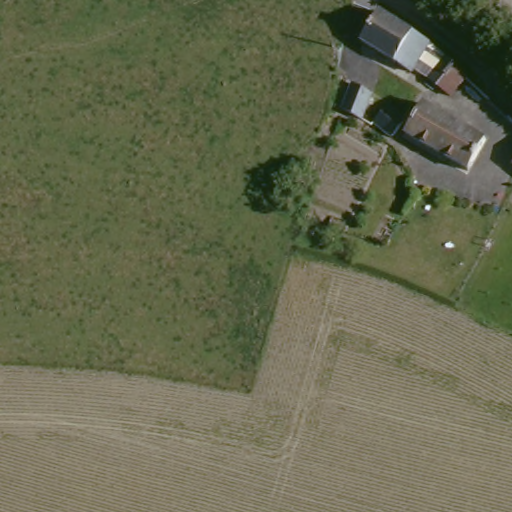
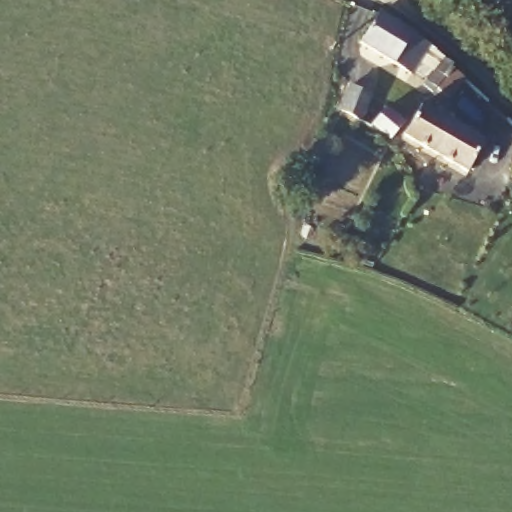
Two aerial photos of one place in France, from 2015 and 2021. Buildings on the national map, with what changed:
unchanged [(427,56),(415,72),(371,41),(385,15),(433,42),(425,54),(427,56)]
unchanged [(437,86),(453,62),(464,70),(447,93),(437,86)]
unchanged [(342,106),(351,86),(368,94),(359,113),(342,106)]
unchanged [(372,121),(385,104),(399,115),(405,120),(391,137),(372,121)]
unchanged [(466,172),(407,136),(425,105),(484,141),(466,172)]

